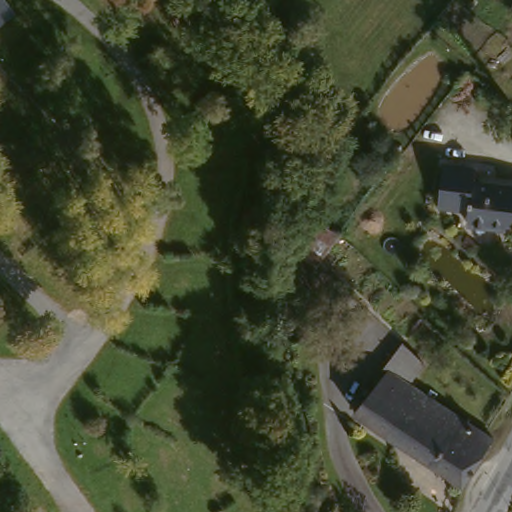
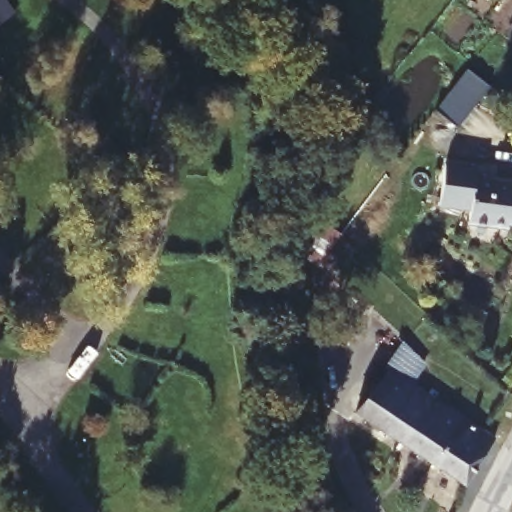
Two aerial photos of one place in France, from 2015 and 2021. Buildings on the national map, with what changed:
new [(0,24),(0,0),(8,0),(16,12),(0,24)]
new [(467,71),(490,88),(458,130),(436,113),(467,71)]
unchanged [(480,167),(479,179),(512,184),(512,223),(510,222),(510,219),(497,218),(496,226),(471,222),(473,209),(442,205),(448,162),(480,167)]
unchanged [(322,260),(285,234),(302,210),(340,234),(322,260)]
unchanged [(467,484),(361,413),(390,368),(383,364),(408,343),(428,364),(415,384),(500,438),(467,484)]

